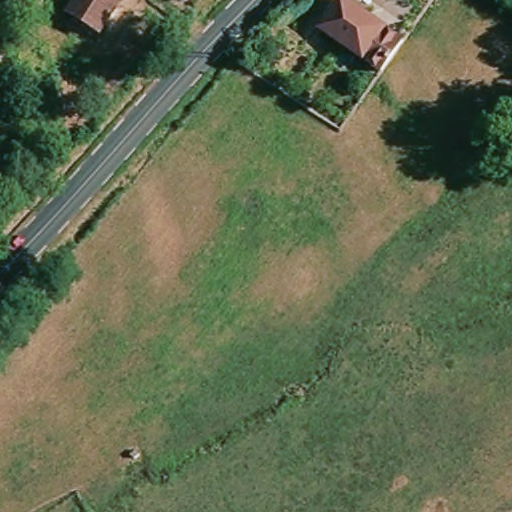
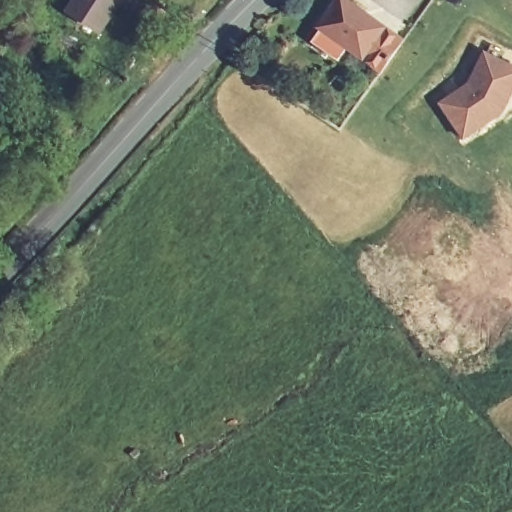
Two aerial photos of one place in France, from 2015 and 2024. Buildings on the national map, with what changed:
unchanged [(94,38),(63,18),(74,0),(119,0),(94,38)]
unchanged [(364,67),(324,38),(345,8),(386,37),(364,67)]
new [(484,53),(512,67),(512,92),(506,105),(492,114),(495,118),(463,139),(439,104),(469,85),(484,53)]

